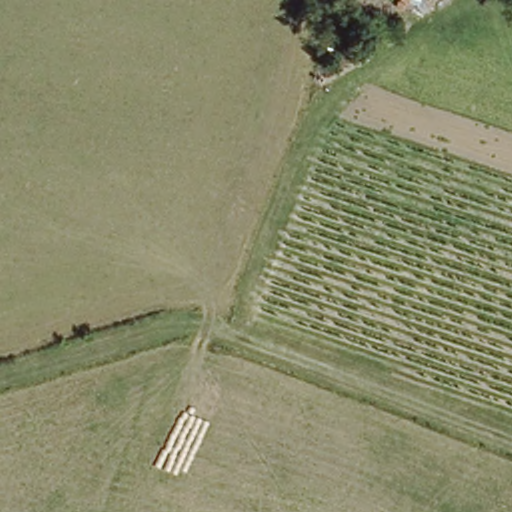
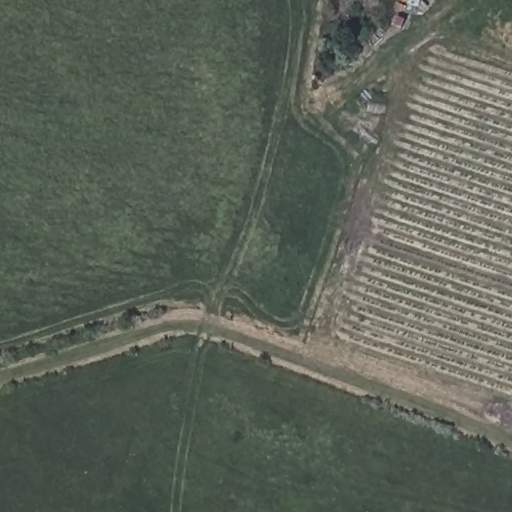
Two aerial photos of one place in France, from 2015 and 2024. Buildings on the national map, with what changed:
unchanged [(404,0),(421,0),(419,7),(404,0)]

